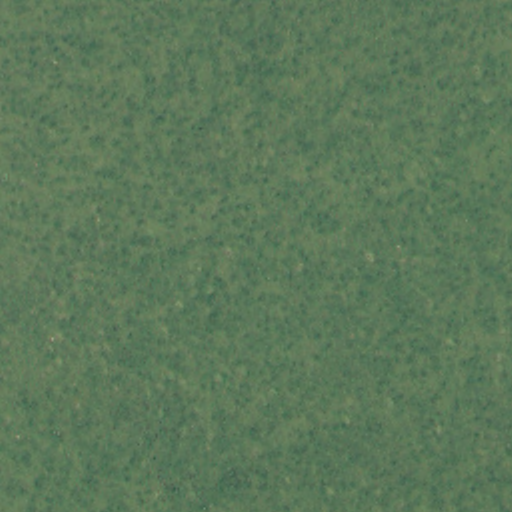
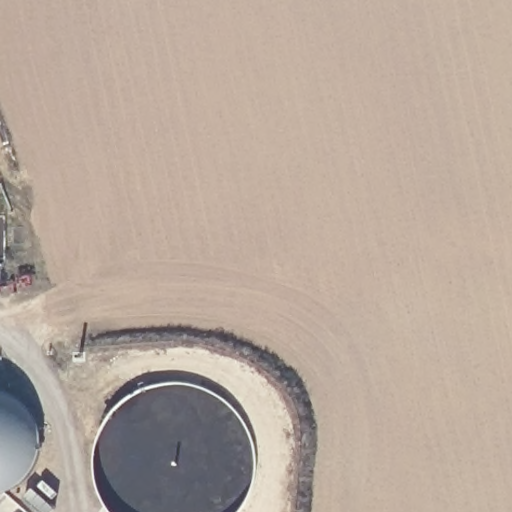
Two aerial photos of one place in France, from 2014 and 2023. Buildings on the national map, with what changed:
new [(14,400),(25,410),(33,423),(37,438),(37,453),(33,468),(25,480),(14,490),(1,497),(0,497),(0,394),(14,400)]
new [(41,482),(56,495),(51,501),(37,487),(41,482)]
new [(50,512),(32,512),(20,501),(29,492),(50,512)]

